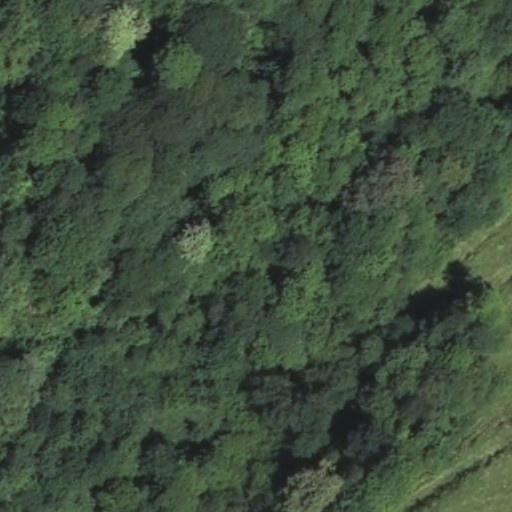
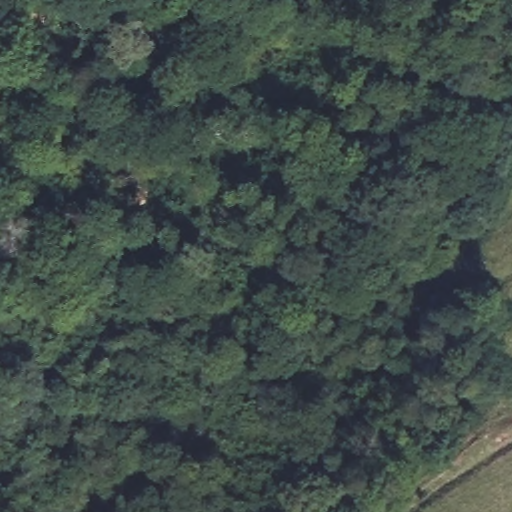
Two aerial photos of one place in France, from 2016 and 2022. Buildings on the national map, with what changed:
[]

